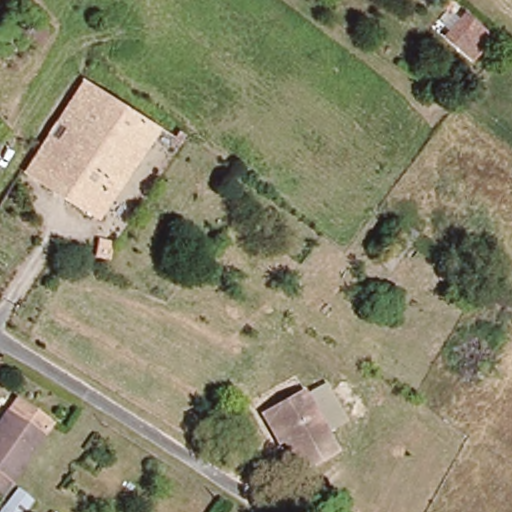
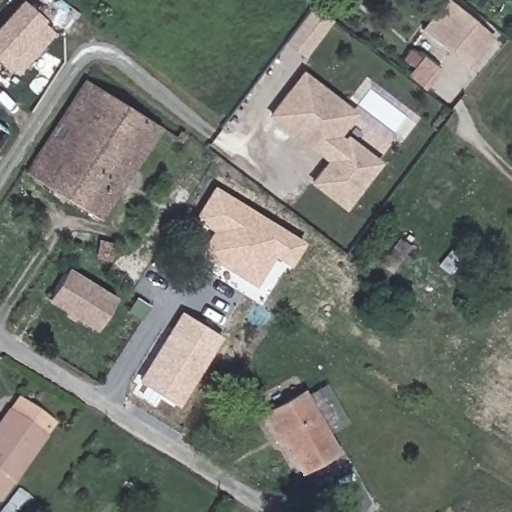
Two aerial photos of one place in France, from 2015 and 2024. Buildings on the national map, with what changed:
new [(14,75),(0,62),(0,19),(17,0),(52,32),(14,75)]
new [(310,7),(326,20),(298,55),(282,43),(310,7)]
unchanged [(490,32),(472,54),(446,30),(462,11),(490,32)]
new [(381,162),(343,209),(308,182),(325,160),(267,115),(302,70),(355,112),(338,134),(342,138),(346,135),(381,162)]
unchanged [(176,140),(166,153),(162,151),(141,138),(89,212),(22,171),(82,82),(172,137),(176,140)]
new [(288,266),(273,256),(254,287),(199,251),(212,230),(192,217),(212,185),(303,241),(288,266)]
unchanged [(388,273),(373,264),(402,223),(417,232),(388,273)]
unchanged [(91,257),(95,236),(112,239),(108,260),(91,257)]
demolished [(445,242),(469,261),(457,279),(433,262),(445,242)]
new [(72,321),(64,315),(66,312),(48,300),(68,267),(116,297),(95,331),(75,318),(72,321)]
new [(179,405),(137,380),(179,310),(220,336),(179,405)]
unchanged [(333,448),(295,467),(278,437),(272,440),(259,411),(269,406),(302,388),(333,448)]
unchanged [(0,486),(0,411),(7,400),(46,425),(6,489),(0,486)]

